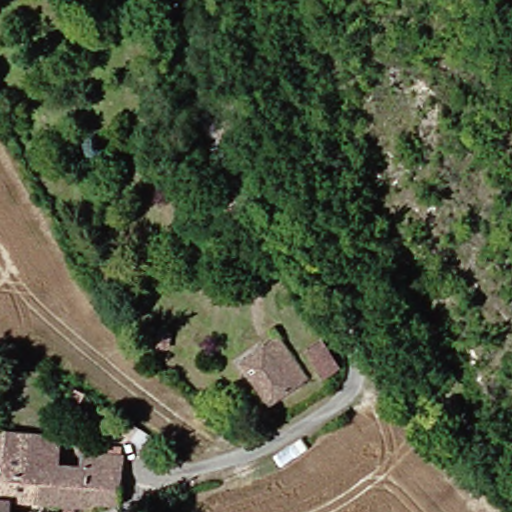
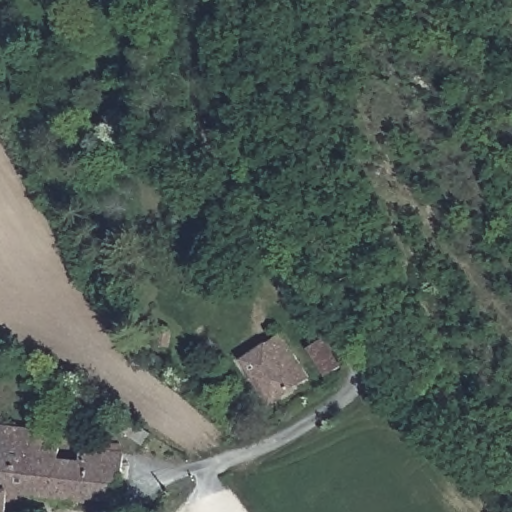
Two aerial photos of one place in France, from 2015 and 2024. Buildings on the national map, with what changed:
unchanged [(178,327),(175,345),(163,343),(166,325),(178,327)]
unchanged [(277,407),(249,364),(288,337),(317,380),(277,407)]
unchanged [(330,345),(346,366),(333,376),(317,354),(330,345)]
unchanged [(160,442),(147,436),(153,424),(166,432),(160,442)]
unchanged [(67,431),(66,455),(92,457),(93,448),(140,452),(135,503),(28,494),(27,512),(0,512),(0,429),(31,432),(31,428),(67,431)]

